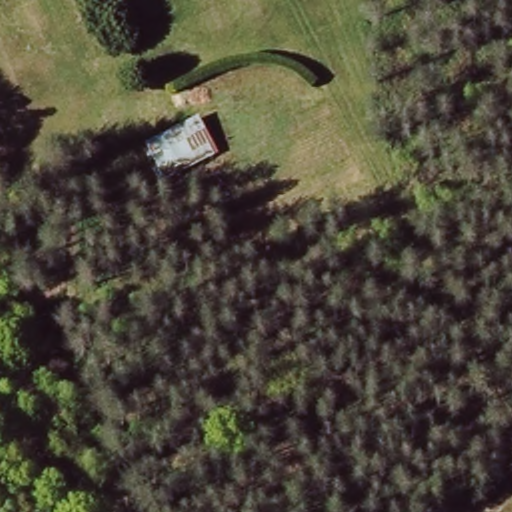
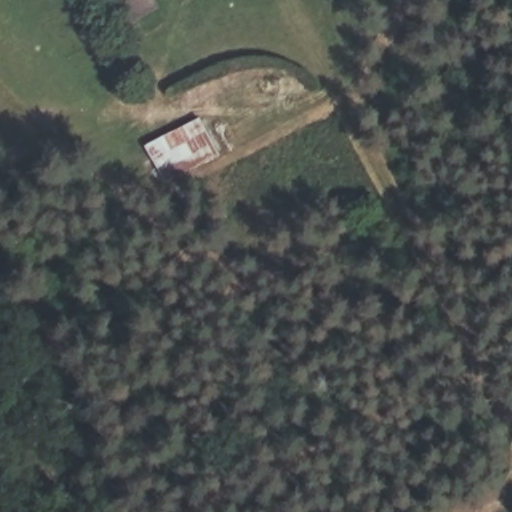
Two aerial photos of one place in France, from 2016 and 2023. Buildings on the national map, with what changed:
unchanged [(216,152),(170,179),(153,142),(202,118),(216,152)]

